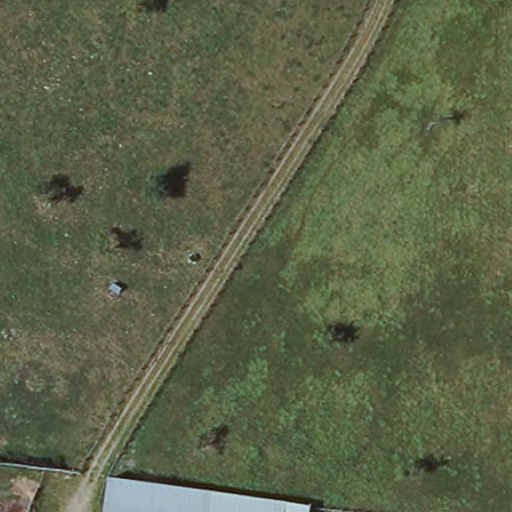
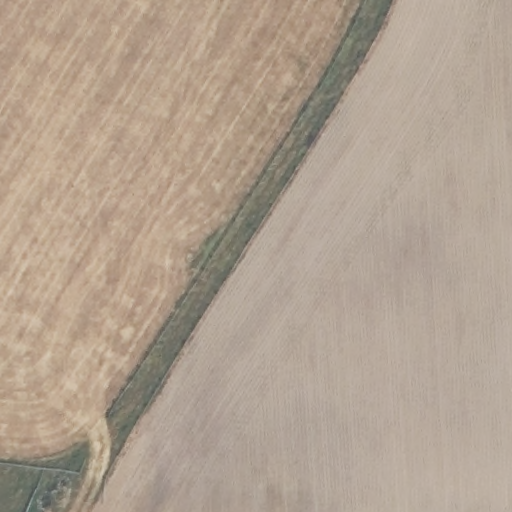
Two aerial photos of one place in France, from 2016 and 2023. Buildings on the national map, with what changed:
demolished [(209,512),(102,512),(105,481),(211,495),(209,512)]
demolished [(303,507),(303,512),(209,512),(211,495),(303,507)]

